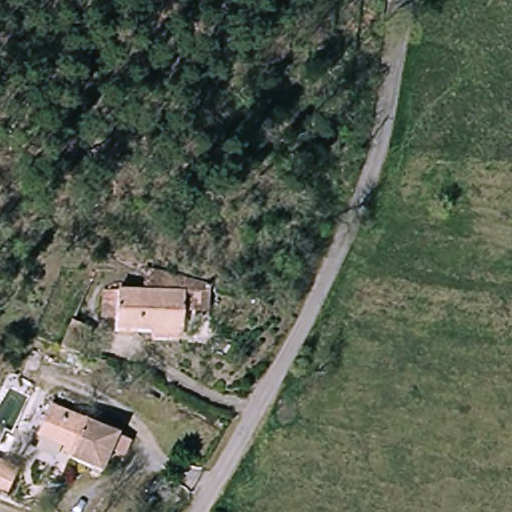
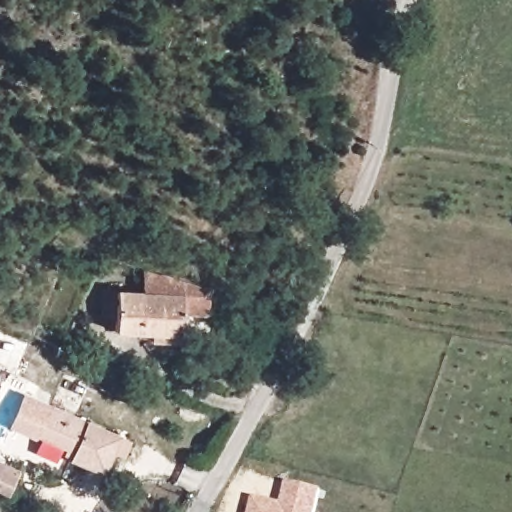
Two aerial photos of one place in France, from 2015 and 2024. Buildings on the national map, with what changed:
unchanged [(181,291),(144,291),(145,268),(205,284),(205,307),(181,306),(181,291)]
unchanged [(155,339),(155,330),(117,329),(117,317),(103,316),(104,292),(118,292),(144,291),(181,291),(181,306),(181,330),(181,339),(155,339)]
unchanged [(73,317),(95,323),(86,345),(65,339),(73,317)]
unchanged [(122,452),(110,448),(103,470),(66,459),(69,449),(35,438),(43,407),(115,429),(128,433),(122,452)]
unchanged [(5,496),(0,494),(0,462),(16,469),(5,496)]
new [(321,489),(315,512),(248,512),(251,495),(281,502),(286,481),(321,489)]

